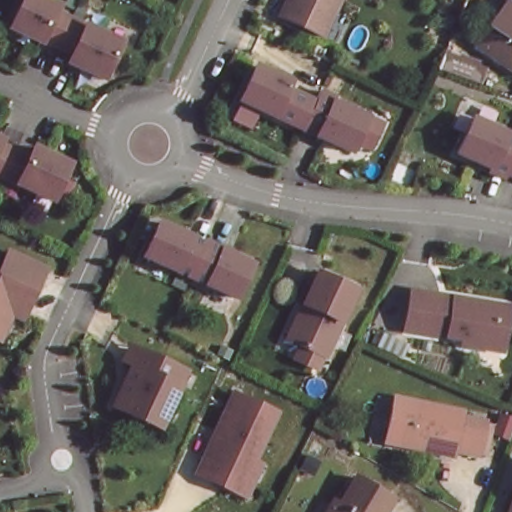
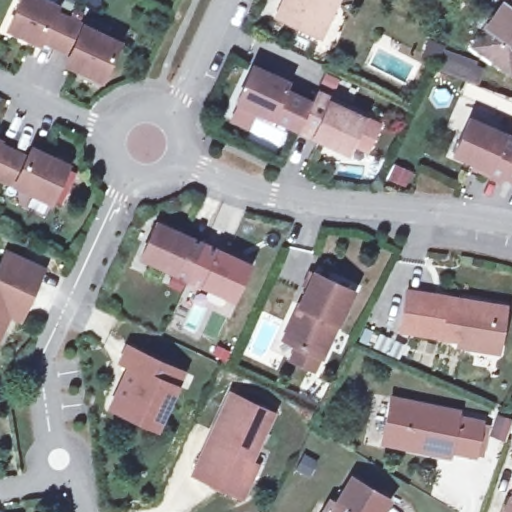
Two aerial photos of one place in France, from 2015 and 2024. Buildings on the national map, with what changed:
unchanged [(53,11),(66,17),(54,45),(39,37),(38,41),(6,27),(18,0),(47,0),(55,4),(53,11)]
unchanged [(282,19),(291,0),(339,0),(322,37),(282,19)]
unchanged [(509,71),(477,47),(509,0),(512,0),(512,66),(509,71)]
unchanged [(118,40),(99,77),(64,61),(68,51),(54,45),(66,17),(118,40)]
unchanged [(283,80),(279,87),(293,94),(281,120),(233,97),(248,64),(283,80)]
unchanged [(307,101),(313,89),(328,96),(326,100),(331,102),(359,115),(344,150),(316,137),(281,120),(293,94),(307,101)]
unchanged [(504,177),(488,171),(489,167),(454,154),(469,119),(512,136),(512,156),(506,172),(504,177)]
unchanged [(0,171),(0,144),(11,150),(0,171)]
unchanged [(30,147),(65,163),(48,200),(0,178),(0,171),(11,150),(26,157),(30,147)]
unchanged [(506,172),(512,156),(512,175),(506,172)]
unchanged [(199,247),(184,281),(138,260),(153,226),(199,247)]
unchanged [(208,251),(246,268),(231,302),(192,284),(184,281),(199,247),(208,251)]
unchanged [(24,306),(13,300),(0,327),(0,261),(4,252),(41,270),(24,306)]
unchanged [(351,295),(320,361),(289,347),(304,313),(298,311),(313,277),(351,295)]
unchanged [(489,301),(488,313),(501,315),(498,335),(476,332),(474,344),(456,342),(457,336),(412,329),(417,290),(489,301)]
unchanged [(153,362),(171,371),(164,386),(169,388),(150,430),(126,418),(105,409),(131,352),(153,362)]
unchanged [(254,457),(268,461),(244,497),(193,475),(231,392),(277,411),(254,457)]
unchanged [(461,410),(460,416),(484,421),(476,460),(452,455),(451,460),(381,446),(390,397),(461,410)]
unchanged [(334,440),(326,455),(311,447),(318,432),(334,440)]
unchanged [(393,495),(383,512),(321,512),(329,497),(334,501),(351,473),(393,495)]
unchanged [(512,494),(512,512),(507,512),(512,494)]

